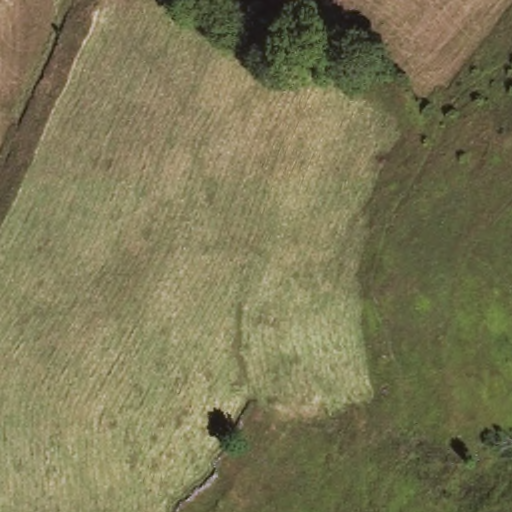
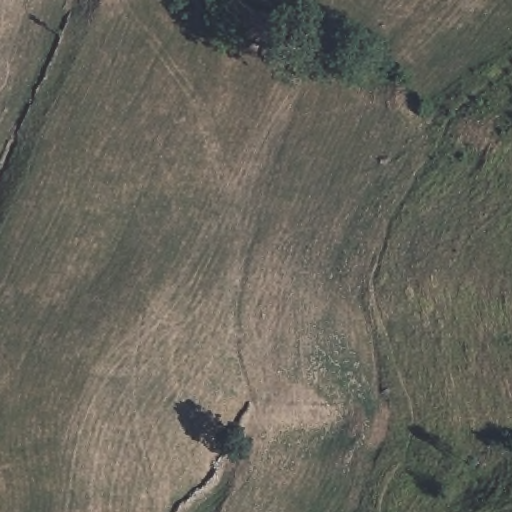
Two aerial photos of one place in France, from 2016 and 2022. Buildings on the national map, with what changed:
[]

